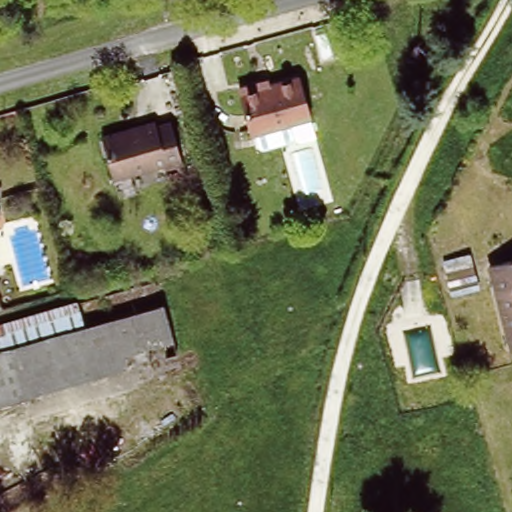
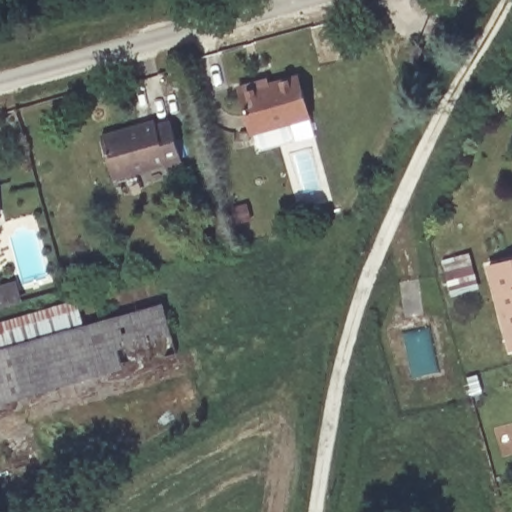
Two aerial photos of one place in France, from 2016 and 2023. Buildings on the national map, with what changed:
unchanged [(314,117),(255,133),(242,87),(265,81),(265,85),(303,76),(314,117)]
unchanged [(187,165),(169,170),(167,164),(134,174),(135,177),(116,183),(104,143),(130,135),(132,138),(175,126),(187,165)]
unchanged [(512,263),(512,317),(498,266),(512,263)]
unchanged [(0,324),(75,299),(77,313),(100,307),(97,297),(155,279),(180,358),(0,410),(0,324)]

